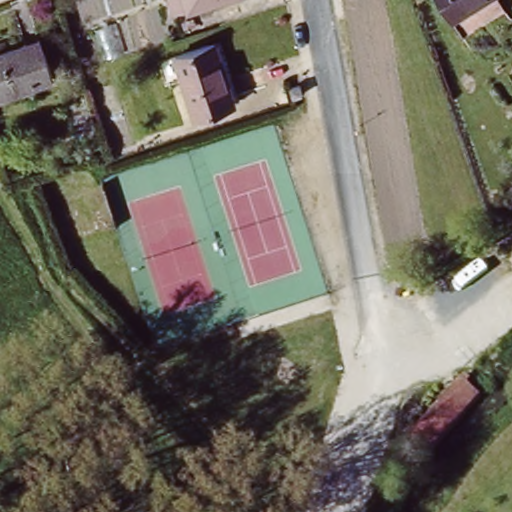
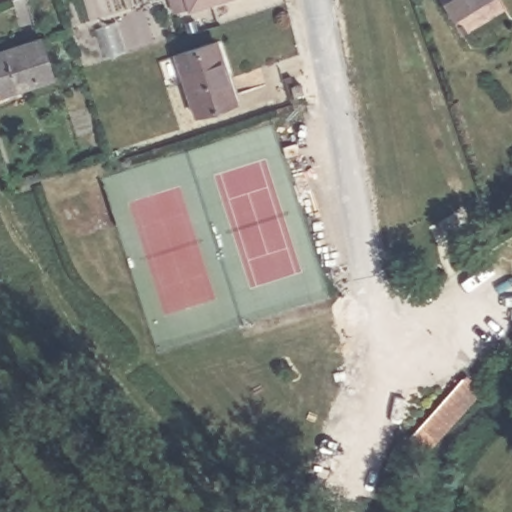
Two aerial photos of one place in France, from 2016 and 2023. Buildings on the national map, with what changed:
unchanged [(179,0),(222,0),(182,13),(179,0)]
unchanged [(439,0),(482,0),(452,20),(439,0)]
unchanged [(0,95),(0,52),(40,41),(52,80),(0,95)]
unchanged [(232,105),(192,116),(175,57),(215,45),(232,105)]
unchanged [(429,452),(409,434),(462,375),(464,377),(467,373),(470,376),(467,380),(482,393),(429,452)]

